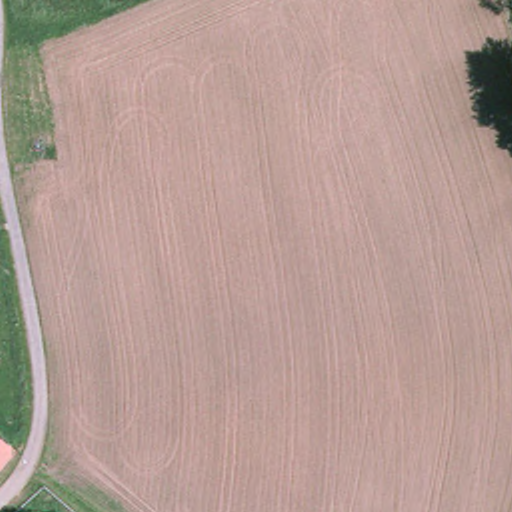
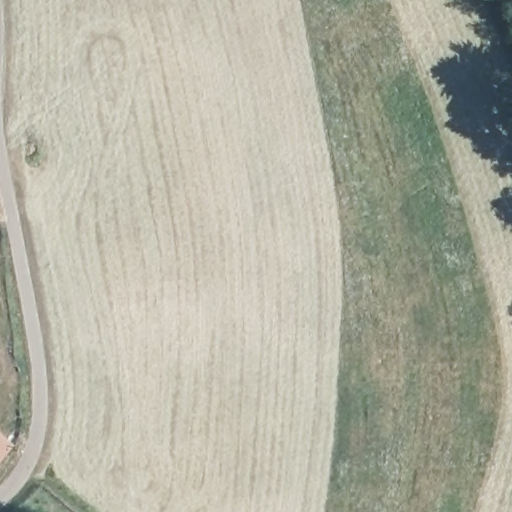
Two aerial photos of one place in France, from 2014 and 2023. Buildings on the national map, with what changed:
unchanged [(23,443),(0,471),(0,423),(23,443)]

